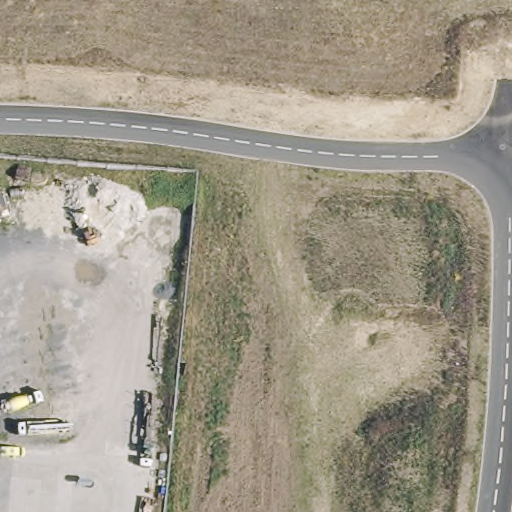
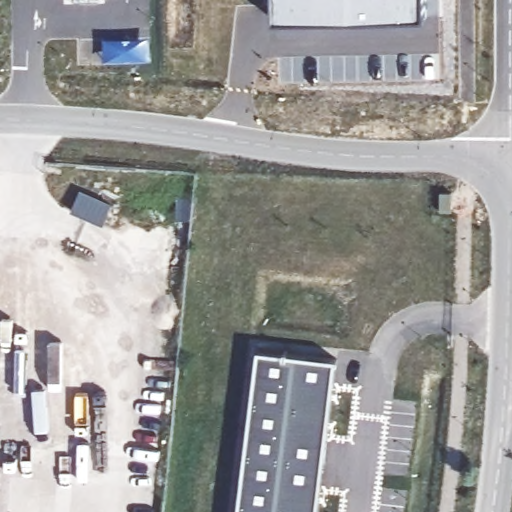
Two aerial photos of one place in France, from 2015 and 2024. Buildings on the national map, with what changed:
new [(277,18),(276,0),(424,0),(424,15),(277,18)]
new [(437,191),(447,191),(447,210),(436,210),(437,191)]
new [(332,357),(314,512),(235,512),(257,349),(332,357)]

